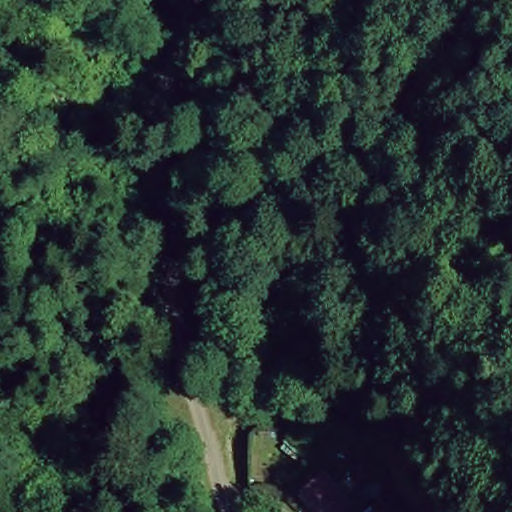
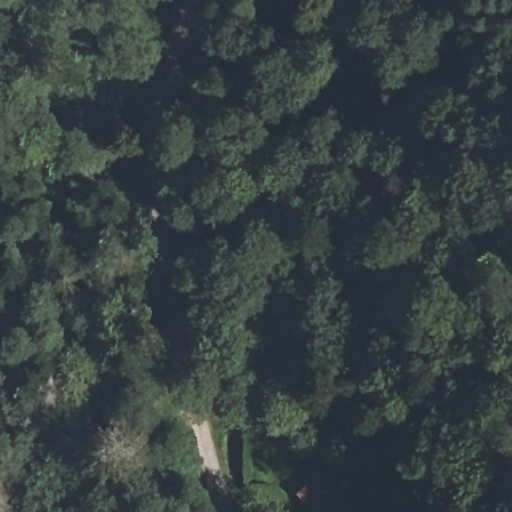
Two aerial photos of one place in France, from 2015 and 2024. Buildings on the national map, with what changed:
unchanged [(335,512),(308,512),(289,494),(310,469),(347,500),(335,512)]
unchanged [(383,512),(374,512),(381,507),(383,512)]

